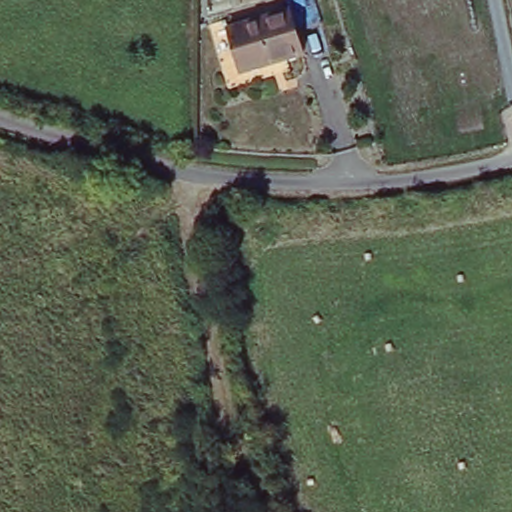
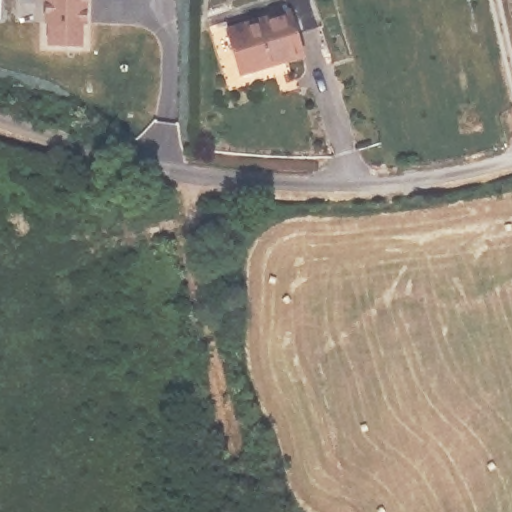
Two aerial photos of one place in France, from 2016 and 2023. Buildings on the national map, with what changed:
new [(46,41),(47,0),(83,0),(83,40),(46,41)]
unchanged [(270,2),(279,0),(297,0),(309,36),(282,43),(286,61),(220,79),(211,39),(275,20),(270,2)]

